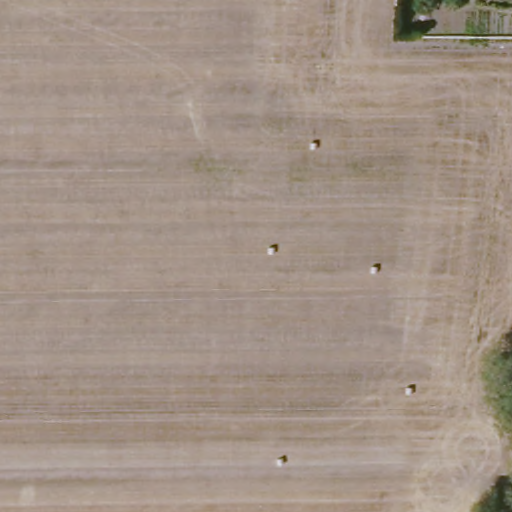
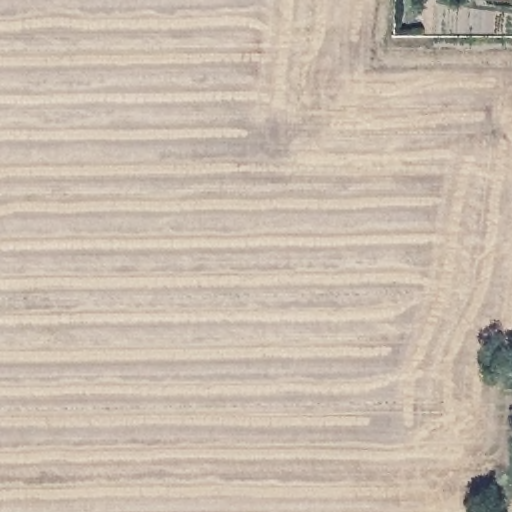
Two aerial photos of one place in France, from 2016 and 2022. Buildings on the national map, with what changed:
[]

